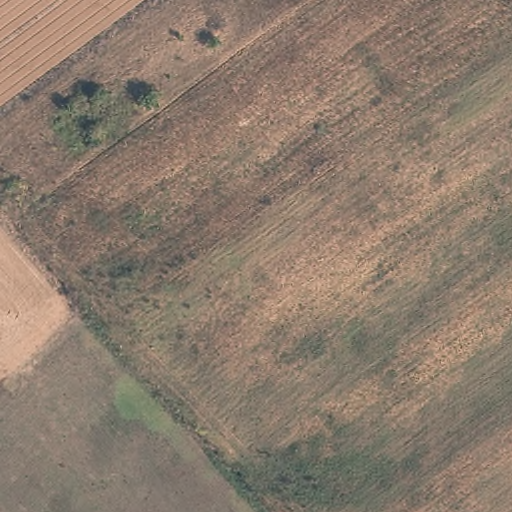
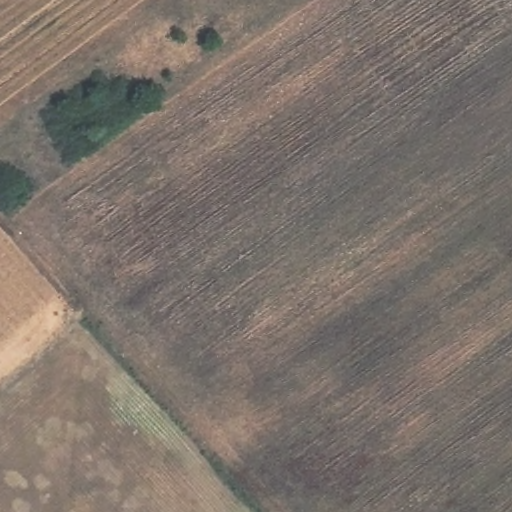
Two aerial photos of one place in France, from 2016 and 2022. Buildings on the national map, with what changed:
[]

